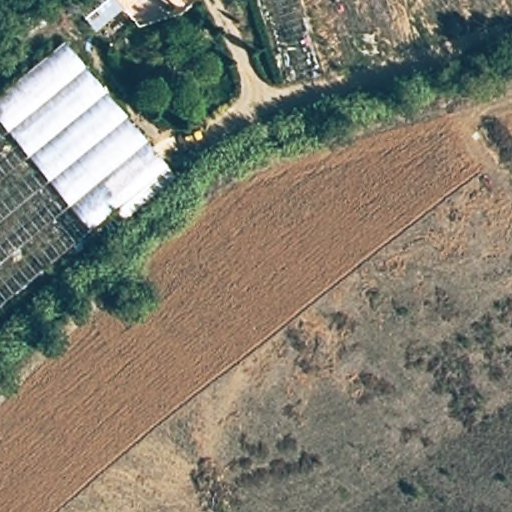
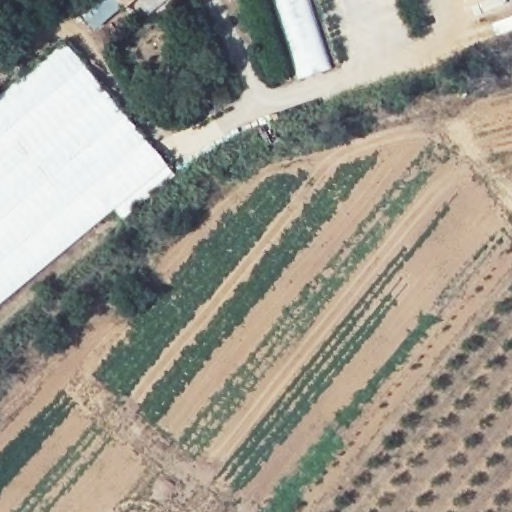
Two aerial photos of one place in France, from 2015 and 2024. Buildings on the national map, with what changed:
new [(121,8),(93,32),(71,8),(80,0),(135,0),(123,10),(121,8)]
new [(151,19),(135,4),(140,0),(178,0),(173,5),(169,1),(151,19)]
new [(298,79),(273,0),(309,0),(332,70),(298,79)]
unchanged [(61,41),(164,166),(0,304),(0,92),(61,41)]

